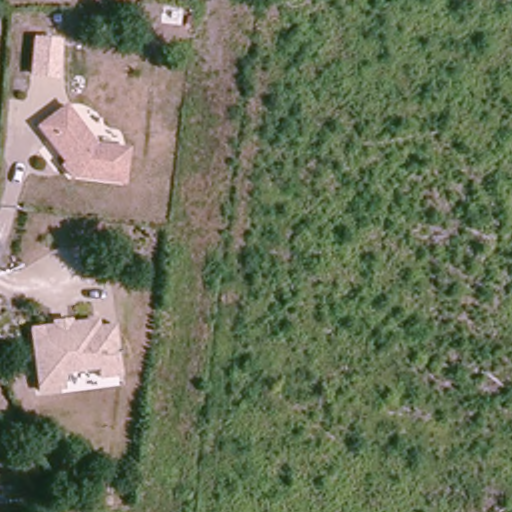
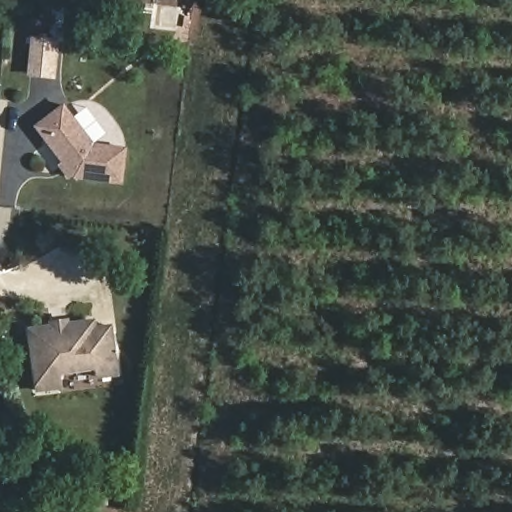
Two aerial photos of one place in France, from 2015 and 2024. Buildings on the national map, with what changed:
unchanged [(92,144),(125,147),(121,183),(72,177),(35,124),(65,103),(92,144)]
unchanged [(57,390),(57,385),(34,387),(26,325),(50,322),(51,327),(62,325),(62,321),(91,317),(92,325),(109,322),(115,371),(95,373),(96,385),(57,390)]

